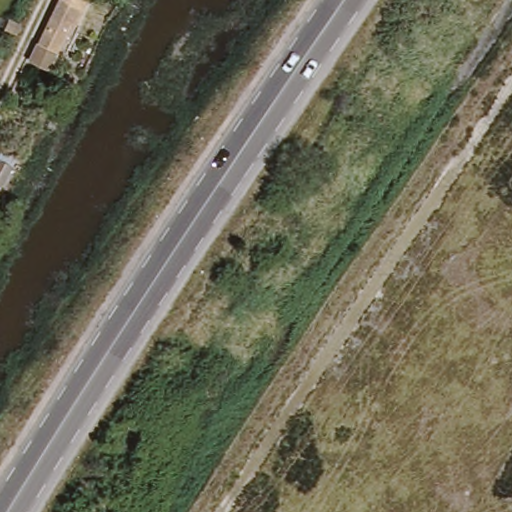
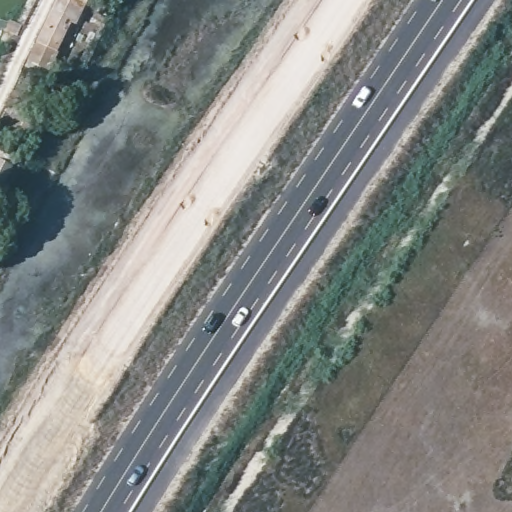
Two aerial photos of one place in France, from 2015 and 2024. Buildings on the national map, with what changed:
unchanged [(27,67),(57,5),(86,19),(55,79),(27,67)]
unchanged [(6,203),(0,201),(0,158),(22,172),(6,203)]

